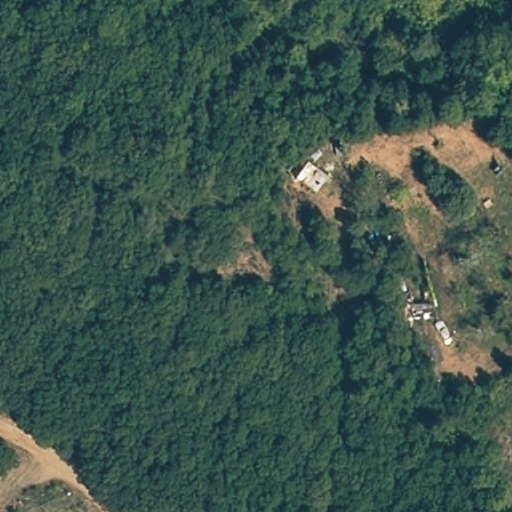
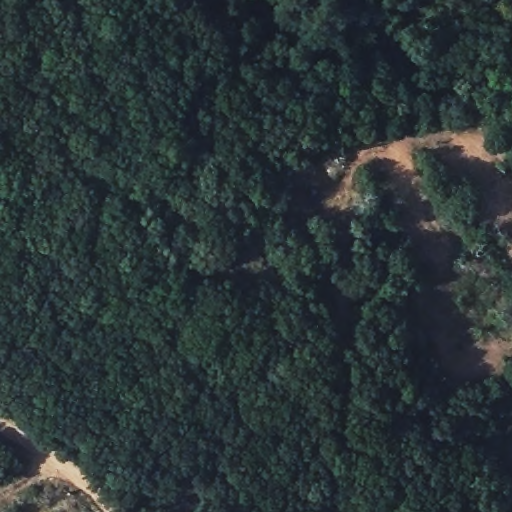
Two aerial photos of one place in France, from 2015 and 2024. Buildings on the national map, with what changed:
unchanged [(307,185),(294,177),(308,157),(319,167),(307,185)]

